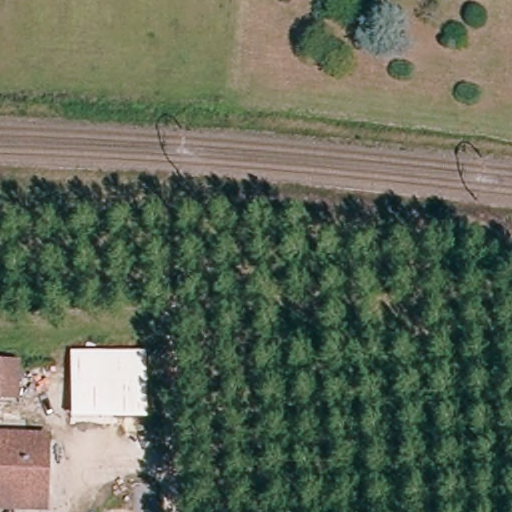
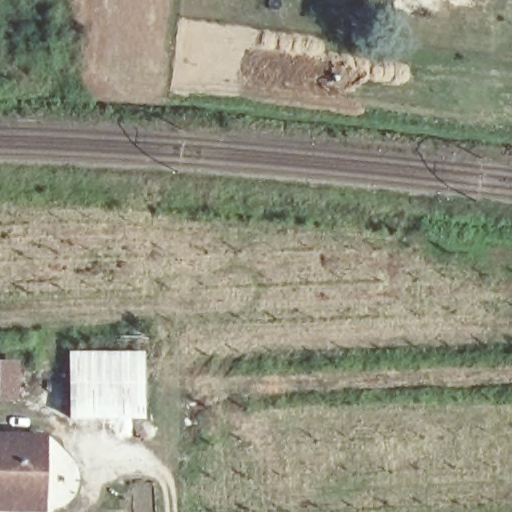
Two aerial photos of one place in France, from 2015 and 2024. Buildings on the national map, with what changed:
unchanged [(17,365),(18,404),(0,404),(0,365),(17,365)]
unchanged [(70,366),(143,368),(141,424),(69,422),(70,369),(70,366)]
unchanged [(39,440),(37,495),(34,495),(34,512),(0,512),(0,440),(39,440)]

